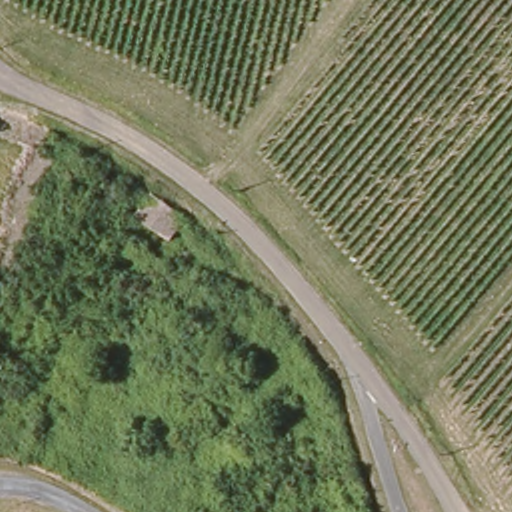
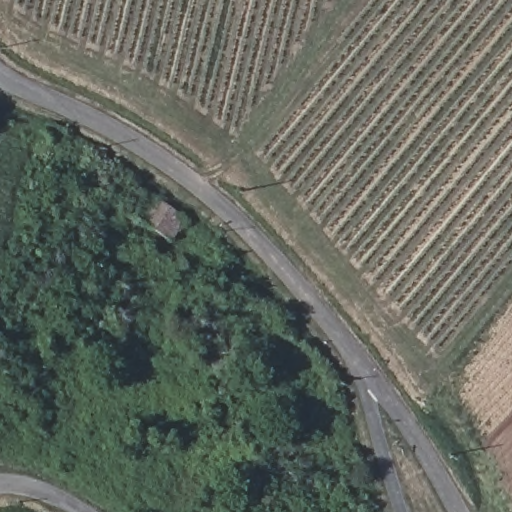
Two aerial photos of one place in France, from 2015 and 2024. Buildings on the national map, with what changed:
unchanged [(174,242),(131,213),(152,190),(189,217),(174,242)]

